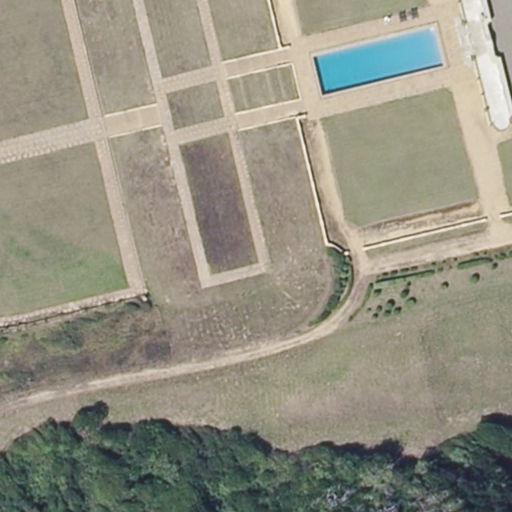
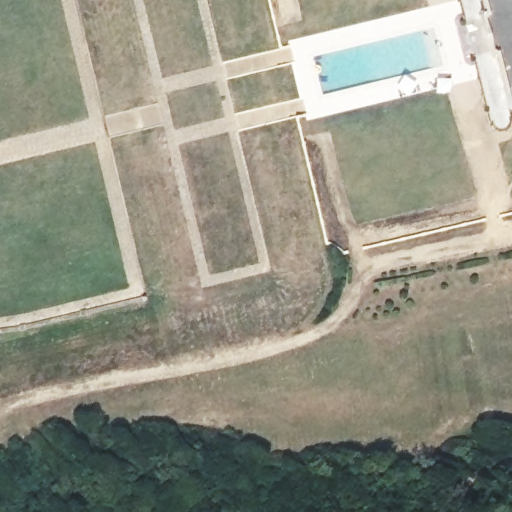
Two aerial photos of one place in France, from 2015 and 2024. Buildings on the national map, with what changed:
unchanged [(494,59),(488,61),(477,19),(483,19),(478,0),(512,0),(512,110),(507,111),(494,59)]

